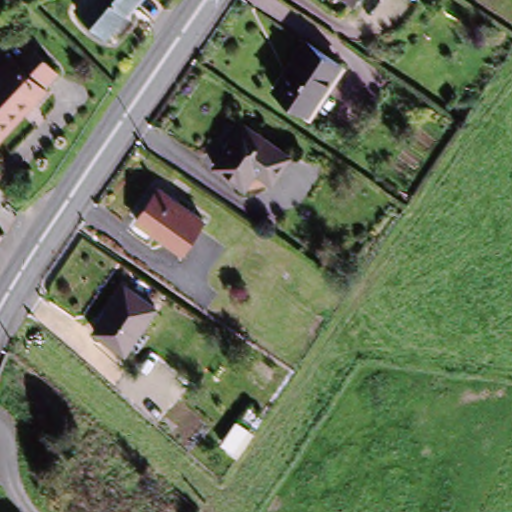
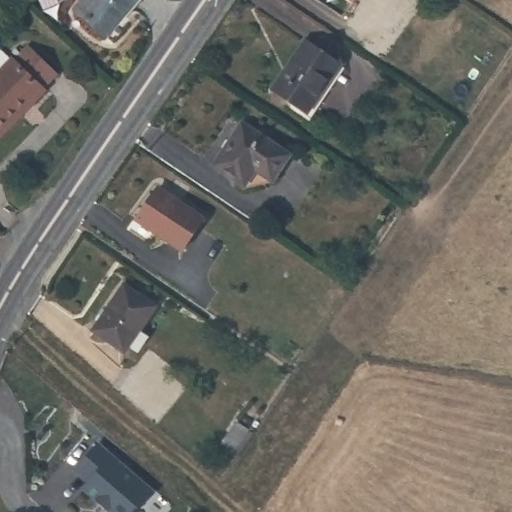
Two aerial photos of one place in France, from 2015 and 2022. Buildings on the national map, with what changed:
unchanged [(83,0),(136,0),(106,36),(75,10),(83,0)]
unchanged [(353,2),(350,0),(354,0),(353,2)]
unchanged [(307,112),(275,90),(284,75),(286,77),(299,57),(297,56),(307,42),(340,65),(307,112)]
unchanged [(15,66),(28,51),(57,79),(44,93),(46,95),(0,143),(0,77),(12,64),(15,66)]
unchanged [(290,150),(273,175),(256,164),(246,181),(215,161),(242,119),(290,150)]
unchanged [(159,188),(205,219),(184,250),(138,219),(159,188)]
unchanged [(151,306),(120,352),(89,331),(120,285),(151,306)]
unchanged [(222,443),(237,422),(247,429),(233,450),(222,443)]
new [(157,496),(146,510),(139,510),(137,512),(111,512),(87,492),(92,486),(78,474),(102,447),(157,496)]

